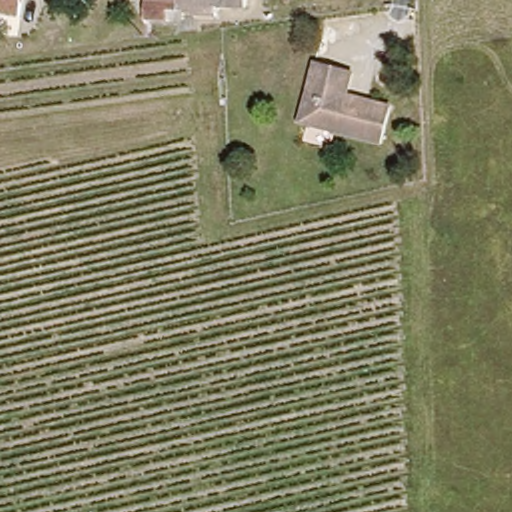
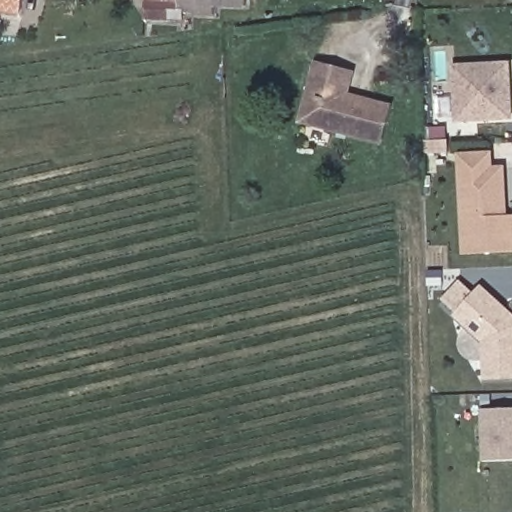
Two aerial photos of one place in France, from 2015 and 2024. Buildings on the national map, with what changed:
unchanged [(0,5),(0,0),(28,0),(28,5),(0,5)]
unchanged [(165,25),(139,25),(140,0),(238,0),(238,5),(215,4),(215,14),(180,13),(180,25),(165,25)]
unchanged [(379,142),(300,122),(316,62),(351,71),(346,92),(389,103),(379,142)]
new [(510,118),(461,120),(458,66),(512,64),(512,75),(512,118),(510,118)]
new [(512,219),(512,252),(462,254),(458,171),(458,156),(489,155),(489,170),(501,169),(502,181),(503,219),(512,219)]
new [(486,288),(512,312),(512,378),(488,379),(486,342),(461,318),(486,288)]
new [(487,463),(485,410),(512,409),(512,462),(487,463)]

